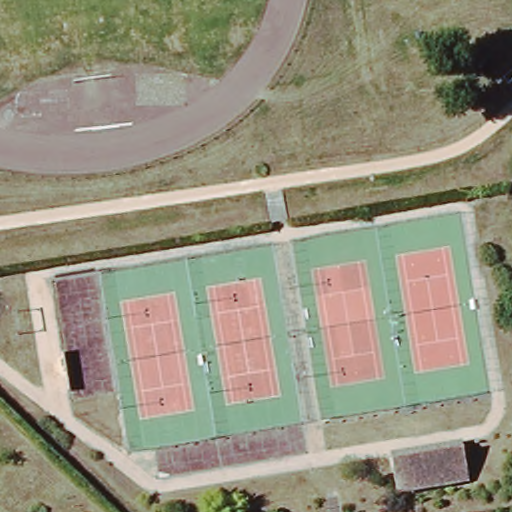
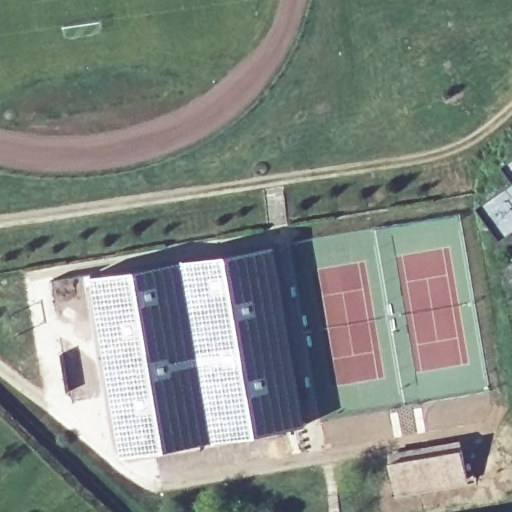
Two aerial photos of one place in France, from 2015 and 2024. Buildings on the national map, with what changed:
unchanged [(512,182),(512,228),(502,235),(480,204),(512,182)]
new [(207,251),(278,241),(308,422),(263,432),(167,448),(121,458),(116,436),(90,272),(207,251)]
unchanged [(394,455),(461,443),(466,477),(399,488),(394,455)]

